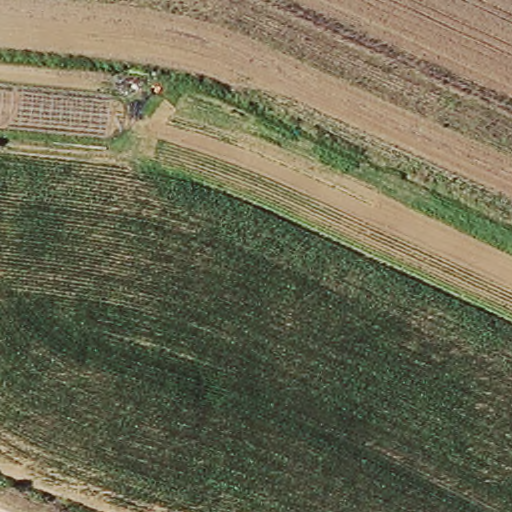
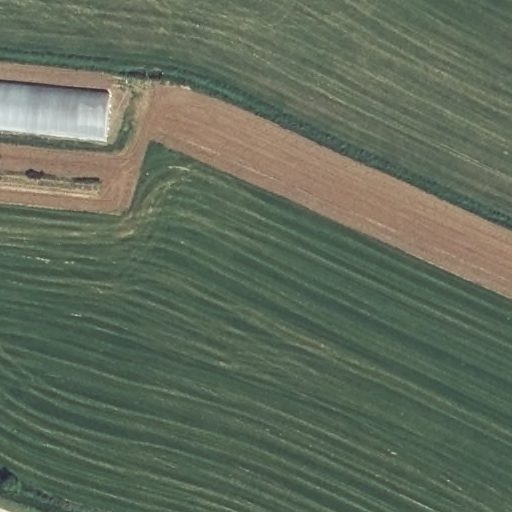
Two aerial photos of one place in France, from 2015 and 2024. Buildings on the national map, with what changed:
new [(0,128),(0,84),(110,96),(106,139),(0,128)]

